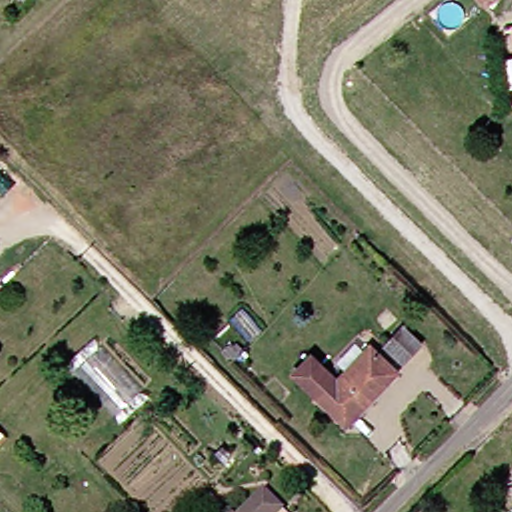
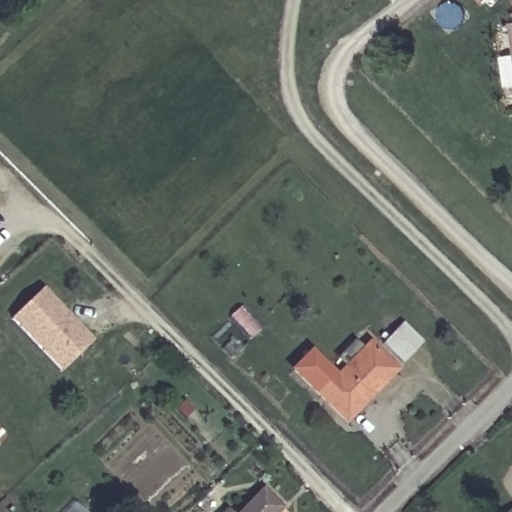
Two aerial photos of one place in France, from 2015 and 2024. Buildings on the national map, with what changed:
new [(485,5),(481,0),(491,0),(485,5)]
demolished [(507,16),(493,0),(512,0),(512,13),(507,16)]
unchanged [(506,30),(512,29),(512,64),(506,30)]
new [(9,316),(38,289),(85,340),(55,366),(9,316)]
unchanged [(415,357),(395,336),(412,318),(433,339),(415,357)]
unchanged [(237,352),(230,345),(239,336),(245,343),(237,352)]
unchanged [(309,359),(332,380),(367,345),(393,370),(342,422),(293,375),(309,359)]
unchanged [(277,499),(264,512),(230,512),(260,482),(277,499)]
unchanged [(509,512),(512,509),(512,512),(509,512)]

